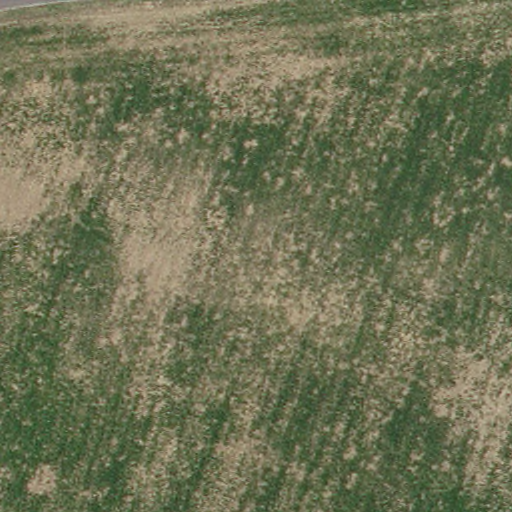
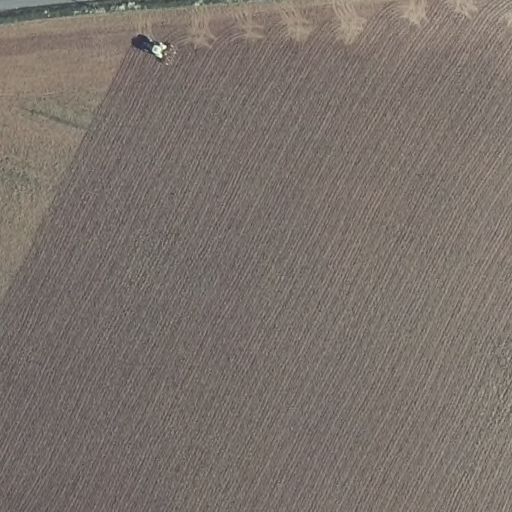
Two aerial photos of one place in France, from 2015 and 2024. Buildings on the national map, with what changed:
[]

